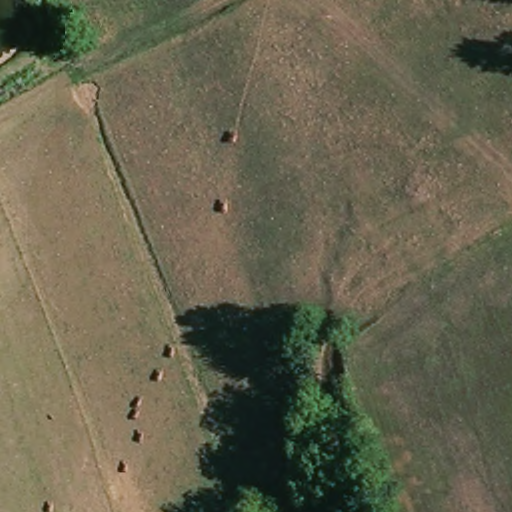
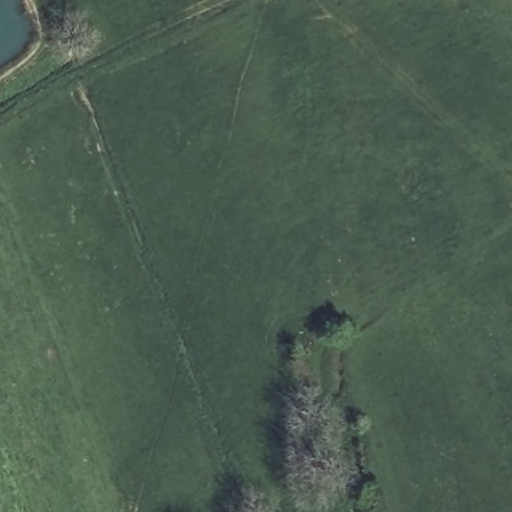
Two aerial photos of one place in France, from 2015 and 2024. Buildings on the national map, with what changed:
[]

